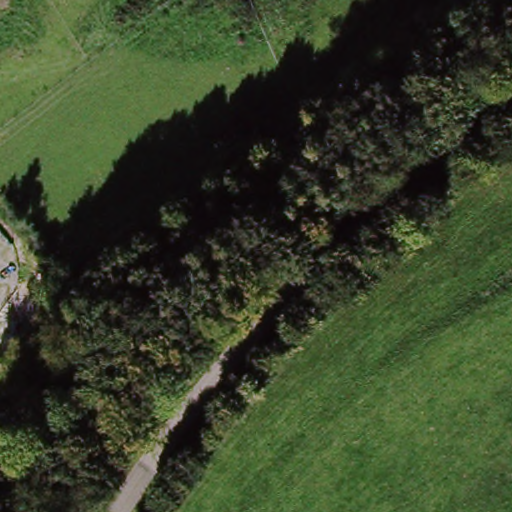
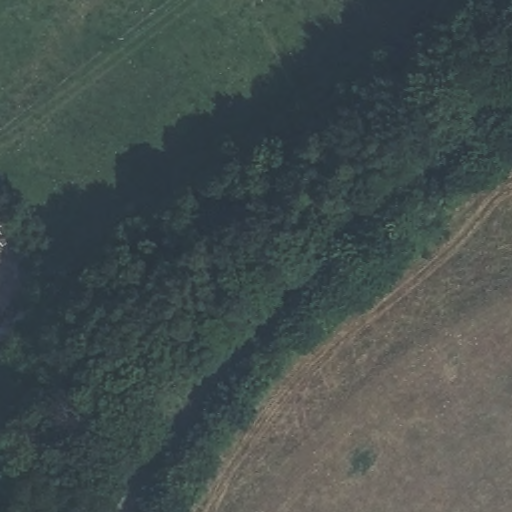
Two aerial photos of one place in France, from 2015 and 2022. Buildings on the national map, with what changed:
unchanged [(0,259),(0,233),(13,244),(0,259)]

